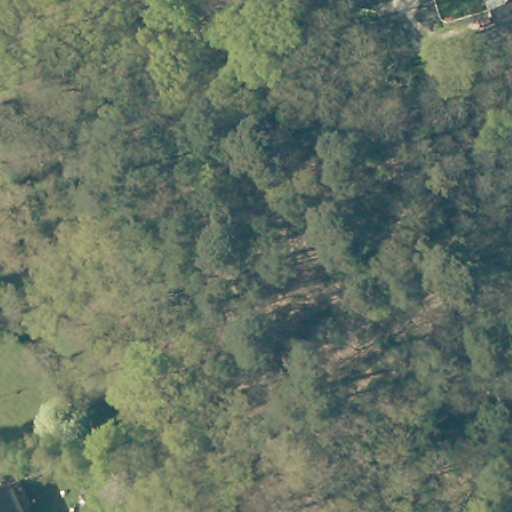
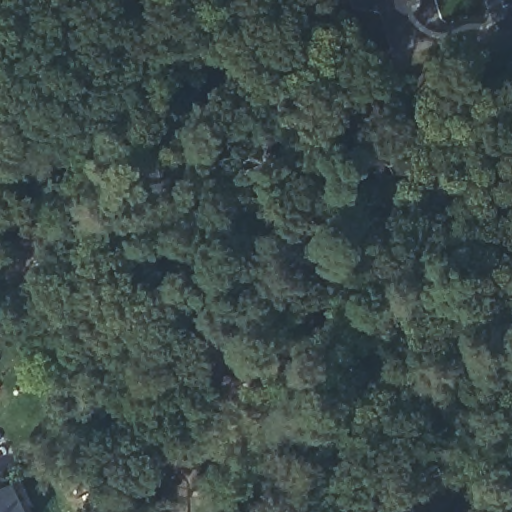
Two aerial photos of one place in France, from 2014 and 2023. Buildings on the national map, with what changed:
unchanged [(512,21),(498,26),(490,0),(512,0),(512,21)]
unchanged [(30,512),(0,512),(0,492),(16,485),(30,512)]

